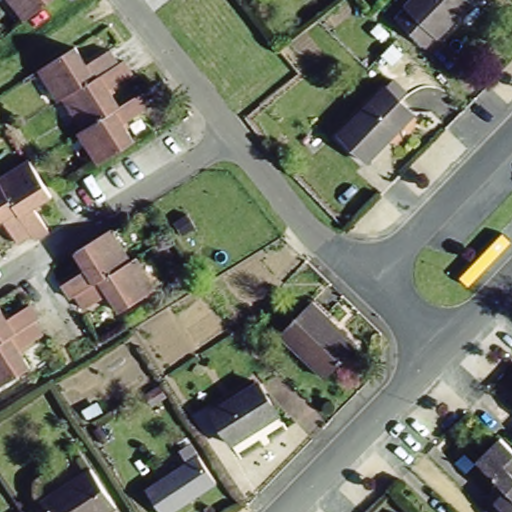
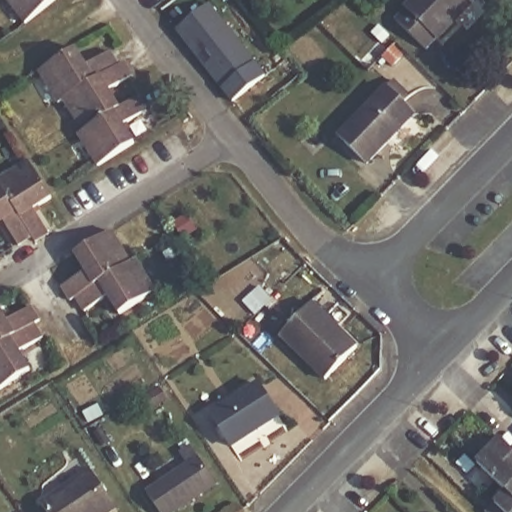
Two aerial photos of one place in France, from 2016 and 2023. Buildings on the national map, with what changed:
unchanged [(5,0),(54,0),(24,24),(5,0)]
unchanged [(465,0),(470,5),(430,45),(399,15),(414,0),(465,0)]
new [(229,103),(175,31),(209,4),(265,75),(229,103)]
unchanged [(96,167),(77,136),(81,134),(62,104),(58,106),(39,75),(75,52),(85,68),(109,53),(117,67),(123,64),(132,77),(108,92),(120,110),(137,100),(145,112),(122,126),(133,145),(96,167)]
unchanged [(414,116),(368,164),(340,136),(386,89),(414,116)]
unchanged [(19,247),(3,222),(0,224),(0,180),(26,164),(50,201),(35,210),(50,234),(35,243),(32,238),(19,247)]
unchanged [(112,317),(102,299),(79,312),(70,297),(65,300),(57,287),(80,272),(70,255),(106,233),(126,265),(130,262),(150,294),(112,317)]
unchanged [(313,302),(358,347),(327,378),(282,333),(313,302)]
unchanged [(0,305),(11,324),(35,309),(44,324),(39,327),(47,340),(24,355),(34,372),(0,392),(0,305)]
unchanged [(260,384),(279,417),(230,445),(212,412),(260,384)]
unchanged [(486,467),(510,442),(512,444),(512,493),(486,467)]
unchanged [(197,457),(215,485),(175,512),(161,512),(147,491),(197,457)]
unchanged [(111,512),(101,512),(101,511),(100,512),(50,512),(42,500),(92,468),(117,508),(111,512)]
unchanged [(503,508),(512,499),(512,512),(499,512),(503,508)]

